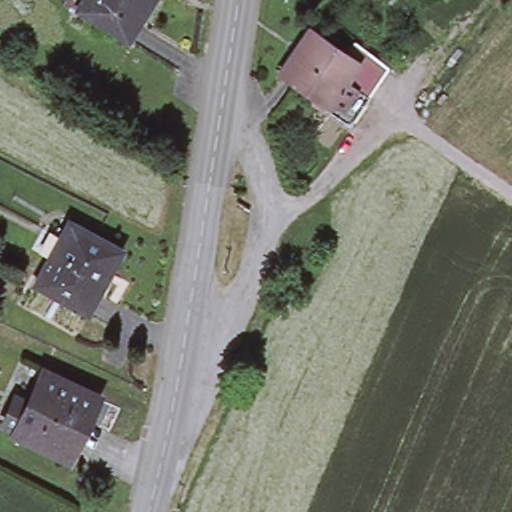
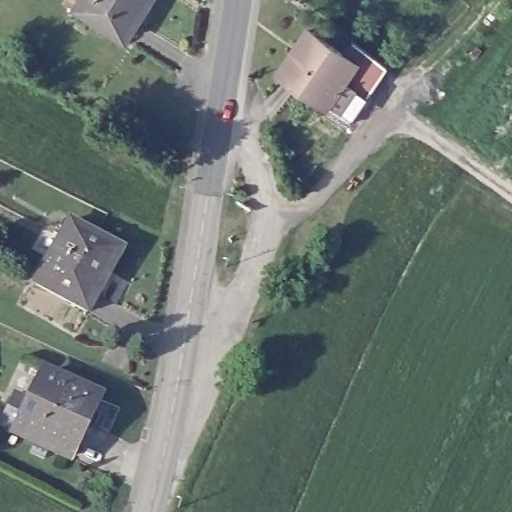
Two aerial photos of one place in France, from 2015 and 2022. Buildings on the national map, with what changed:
unchanged [(129,45),(74,11),(80,0),(156,0),(129,45)]
unchanged [(344,52),(350,40),(387,66),(350,124),(277,73),(307,26),(344,52)]
unchanged [(105,237),(100,244),(122,256),(90,313),(37,283),(72,219),(105,237)]
unchanged [(92,399),(62,462),(8,436),(38,373),(92,399)]

